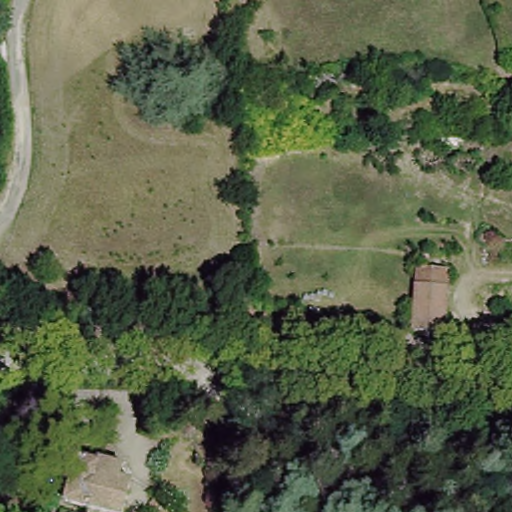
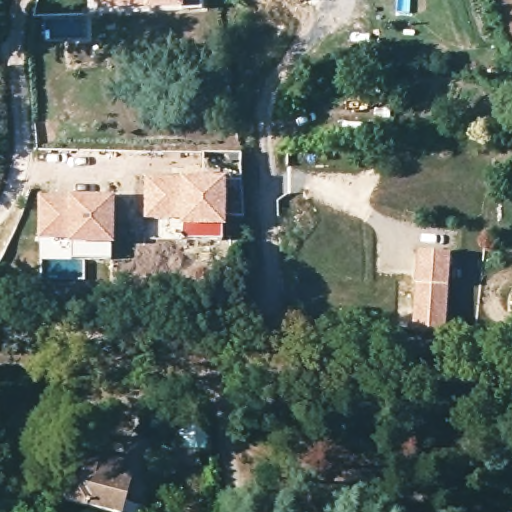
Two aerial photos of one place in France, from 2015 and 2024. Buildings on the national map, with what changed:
new [(108,6),(108,0),(147,0),(148,4),(108,6)]
new [(188,10),(188,4),(156,6),(156,0),(208,0),(209,9),(188,10)]
new [(226,178),(226,195),(226,217),(222,241),(181,239),(181,224),(143,221),(143,176),(226,178)]
new [(68,197),(115,199),(113,247),(111,260),(69,261),(69,247),(69,238),(38,240),(39,196),(68,197)]
unchanged [(452,273),(444,335),(416,331),(421,270),(452,273)]
unchanged [(63,476),(56,474),(64,448),(88,454),(89,449),(116,456),(113,471),(124,475),(115,512),(111,512),(59,499),(63,476)]

